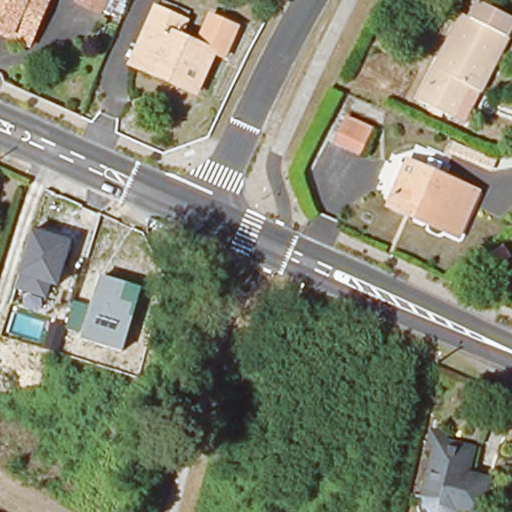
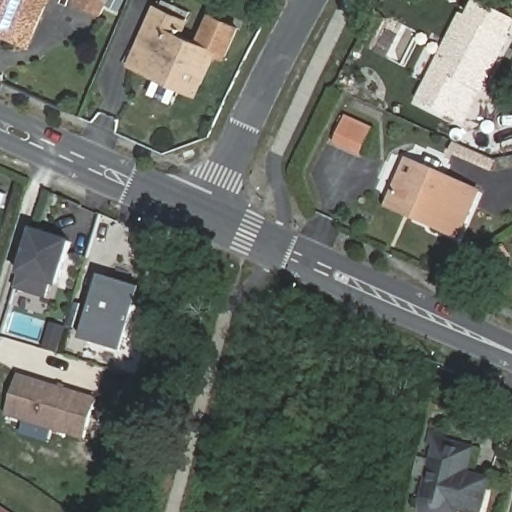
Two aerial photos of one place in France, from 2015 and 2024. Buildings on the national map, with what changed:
unchanged [(0,36),(0,0),(54,0),(33,50),(0,36)]
unchanged [(101,15),(76,2),(77,0),(109,0),(101,15)]
unchanged [(416,100),(463,14),(471,18),(480,0),(512,19),(512,27),(477,90),(459,122),(449,116),(416,100)]
unchanged [(206,26),(233,39),(220,67),(211,64),(193,104),(175,96),(179,87),(144,71),(158,40),(145,35),(151,19),(182,32),(175,48),(193,56),(206,26)]
unchanged [(370,134),(359,155),(334,144),(345,121),(370,134)]
unchanged [(397,194),(412,159),(480,190),(459,235),(418,216),(392,204),(397,194)]
unchanged [(46,298),(15,288),(20,274),(34,229),(73,240),(58,286),(52,285),(46,298)]
unchanged [(502,247),(508,256),(492,268),(485,259),(502,247)]
unchanged [(124,351),(82,339),(84,333),(68,328),(75,301),(92,305),(101,275),(144,287),(124,351)]
new [(87,436),(86,440),(5,416),(19,373),(100,397),(87,436)]
unchanged [(480,512),(420,512),(421,511),(421,510),(434,452),(424,450),(428,435),(446,439),(444,450),(461,453),(468,455),(464,474),(463,480),(486,485),(480,512)]

